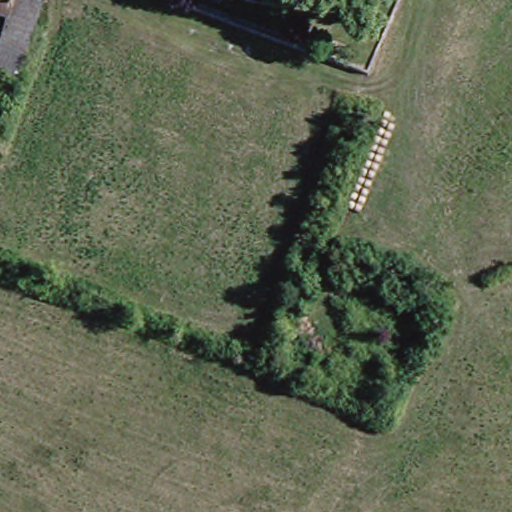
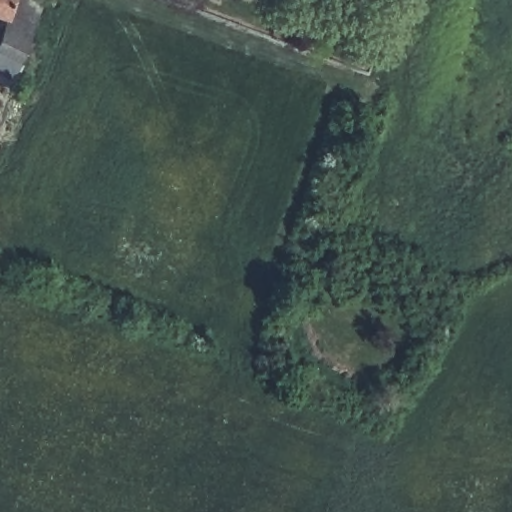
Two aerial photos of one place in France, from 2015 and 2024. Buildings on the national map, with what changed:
unchanged [(0,79),(0,51),(11,30),(15,21),(0,16),(0,0),(49,0),(18,86),(0,79)]

